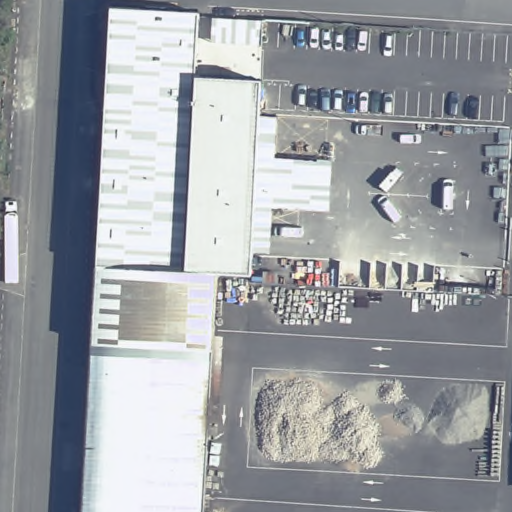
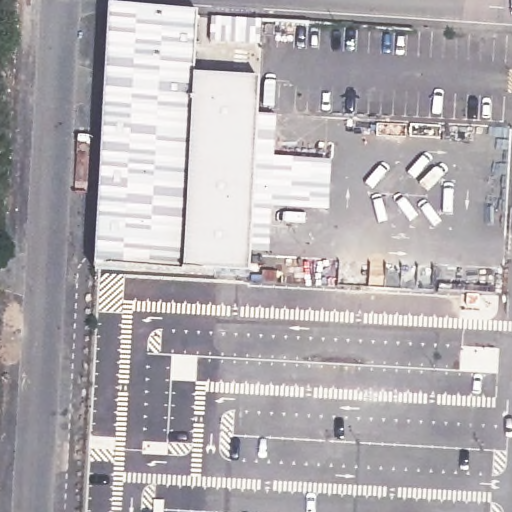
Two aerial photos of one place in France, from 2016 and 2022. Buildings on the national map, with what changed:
unchanged [(107,9),(198,16),(194,81),(253,85),(242,282),(215,280),(184,279),(93,273),(107,9)]
demolished [(184,279),(215,280),(202,512),(80,512),(93,273),(184,279)]

